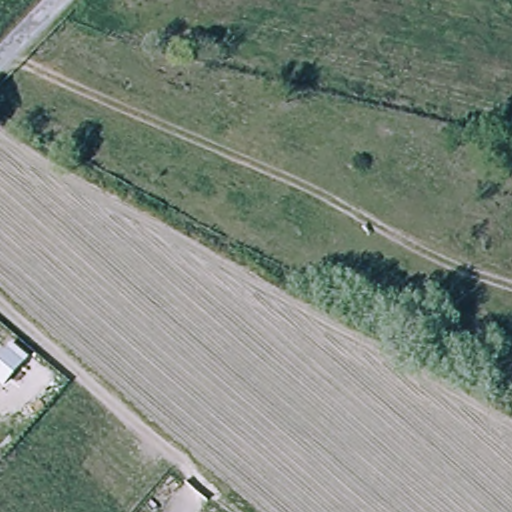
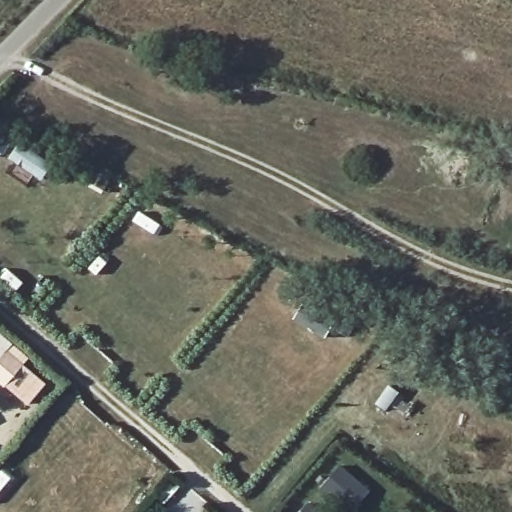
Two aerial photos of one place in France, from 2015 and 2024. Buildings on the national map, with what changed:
new [(43,385),(28,402),(11,388),(9,390),(0,383),(0,349),(43,385)]
new [(340,464),(370,490),(351,512),(346,512),(320,488),(340,464)]
new [(321,512),(300,512),(308,501),(321,512)]

